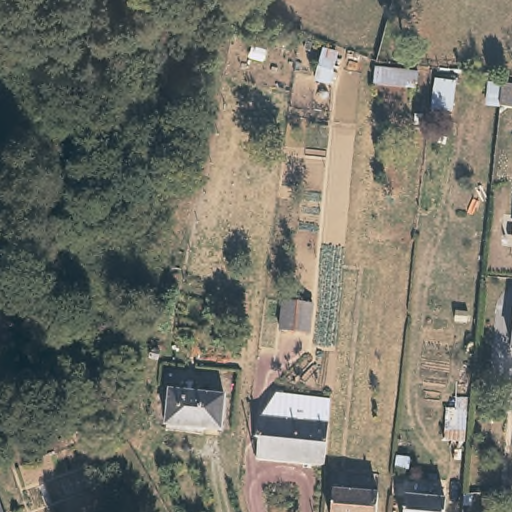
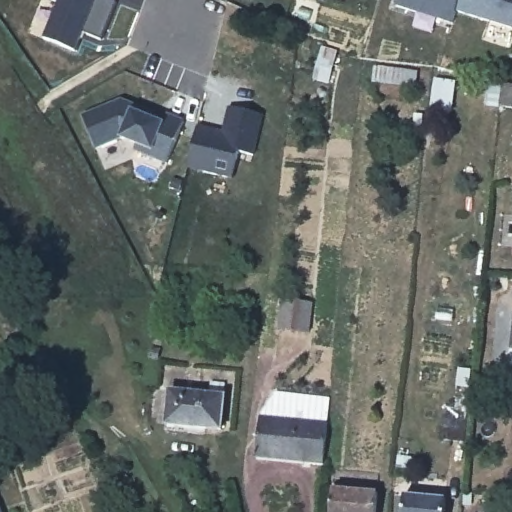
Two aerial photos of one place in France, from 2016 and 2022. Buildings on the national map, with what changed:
new [(116,0),(101,37),(82,30),(75,48),(43,36),(57,0),(116,0)]
new [(453,24),(395,6),(397,0),(512,0),(512,29),(457,11),(453,24)]
unchanged [(512,102),(497,102),(499,80),(512,81),(512,102)]
new [(84,113),(122,99),(165,116),(167,113),(185,120),(166,163),(132,150),(135,144),(122,138),(120,138),(97,148),(84,113)]
new [(199,126),(224,132),(230,108),(262,115),(254,156),(240,153),(234,179),(189,169),(199,126)]
unchanged [(313,303),(312,331),(282,329),(283,301),(313,303)]
unchanged [(225,392),(222,425),(167,420),(170,386),(225,392)]
unchanged [(331,394),(325,459),(257,452),(261,414),(276,390),(331,394)]
unchanged [(472,393),(468,439),(448,436),(451,405),(457,405),(457,392),(472,393)]
unchanged [(380,490),(379,512),(333,512),(334,488),(380,490)]
unchanged [(448,495),(447,512),(406,512),(407,492),(448,495)]
unchanged [(3,512),(0,512),(0,504),(3,512)]

